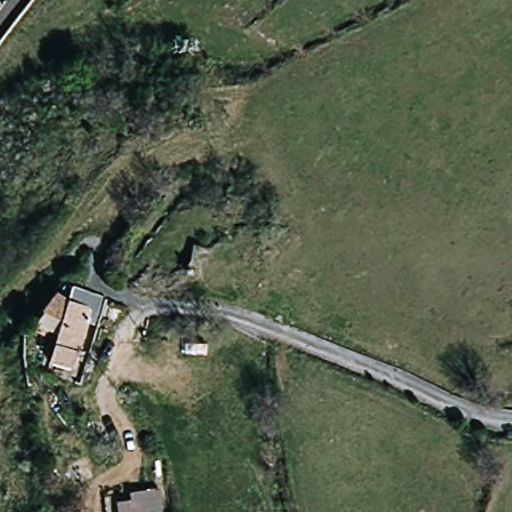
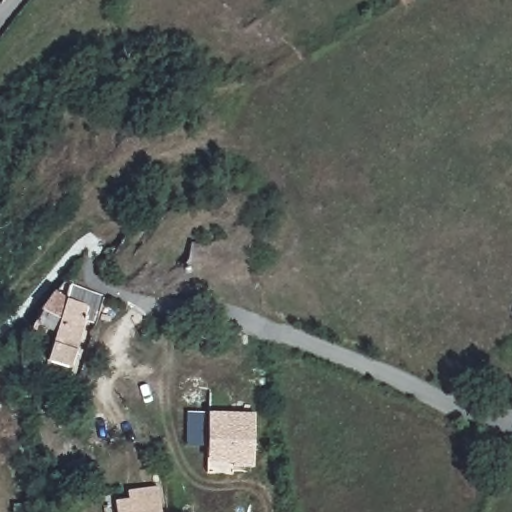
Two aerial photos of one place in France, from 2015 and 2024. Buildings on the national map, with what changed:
unchanged [(56,333),(31,323),(59,290),(93,308),(73,374),(47,366),(56,333)]
new [(254,468),(233,468),(233,462),(207,462),(207,445),(186,445),(186,413),(209,413),(255,414),(254,468)]
unchanged [(131,498),(129,490),(161,486),(164,512),(117,512),(115,499),(131,498)]

